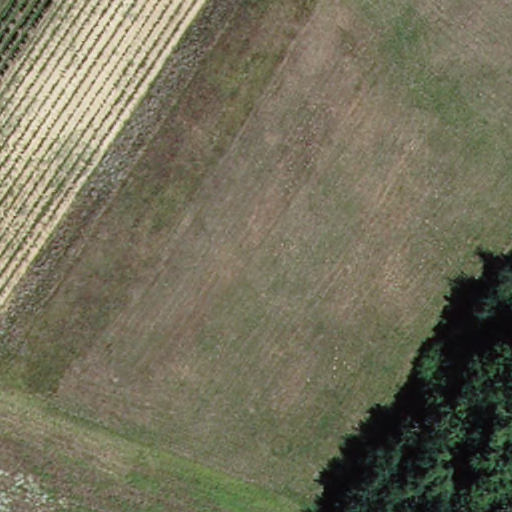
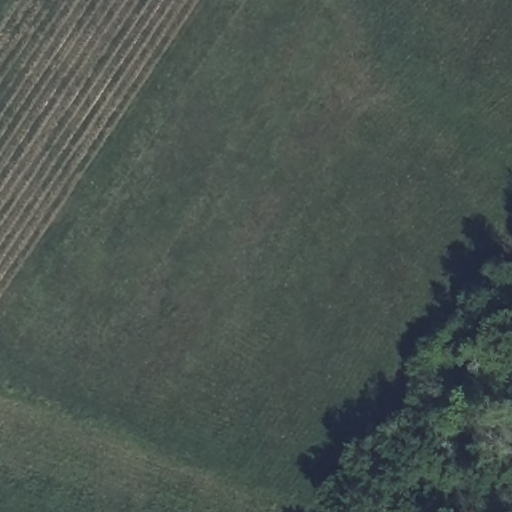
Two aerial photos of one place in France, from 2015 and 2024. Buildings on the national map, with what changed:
[]

